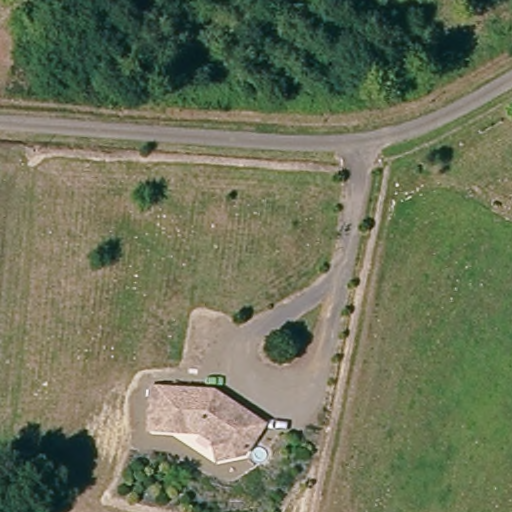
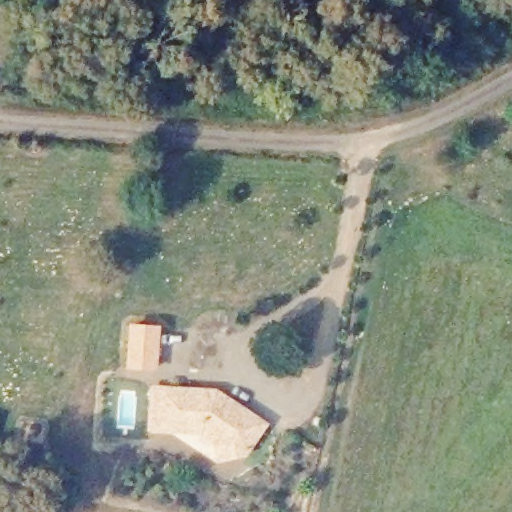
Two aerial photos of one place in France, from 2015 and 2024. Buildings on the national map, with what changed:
new [(156,373),(125,371),(126,326),(159,325),(156,373)]
unchanged [(247,460),(220,466),(216,447),(201,437),(152,436),(155,395),(217,397),(250,420),(266,431),(247,460)]

